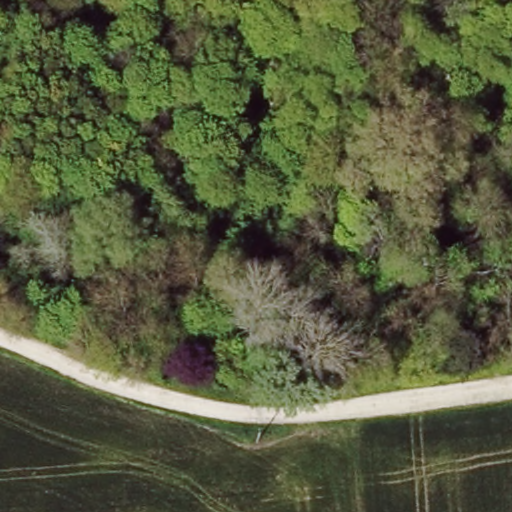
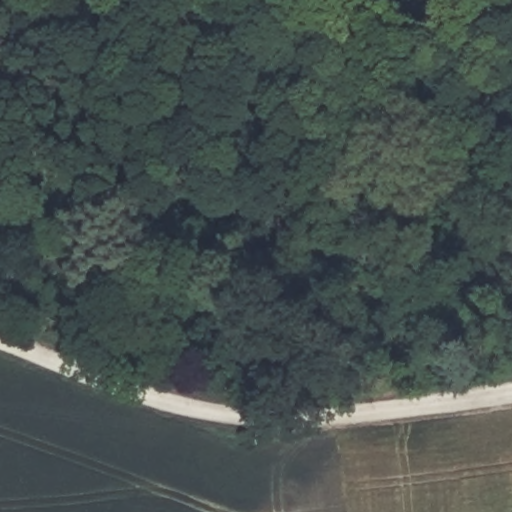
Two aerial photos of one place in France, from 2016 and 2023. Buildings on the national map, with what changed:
unchanged [(494,109),(501,140),(493,141),(487,111),(494,109)]

